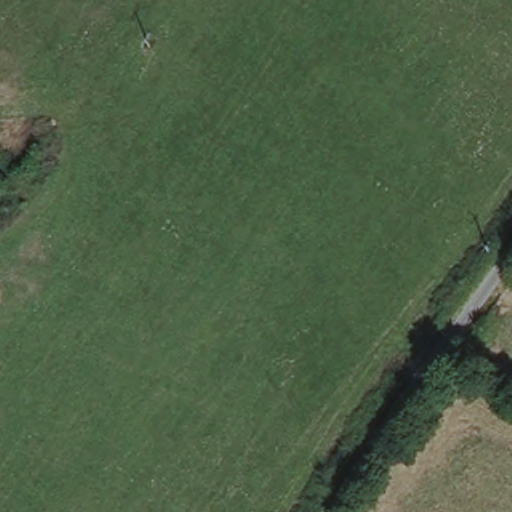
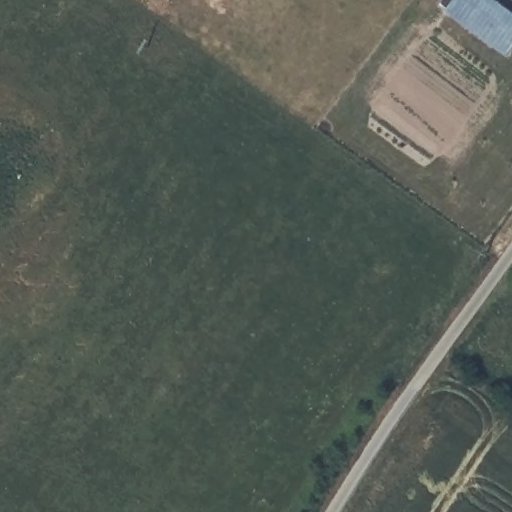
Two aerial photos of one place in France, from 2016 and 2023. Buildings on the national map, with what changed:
new [(453,10),(461,0),(496,0),(512,12),(512,35),(502,47),(453,10)]

